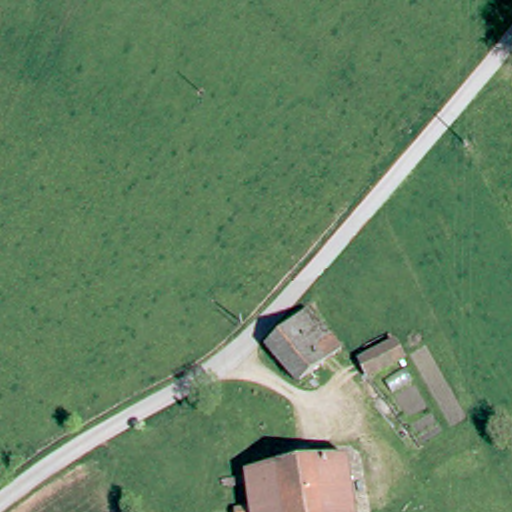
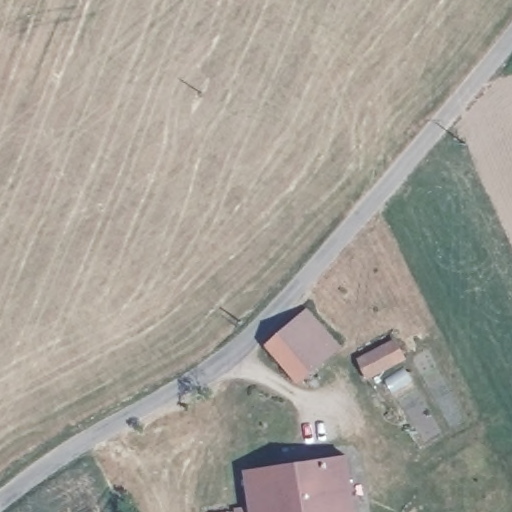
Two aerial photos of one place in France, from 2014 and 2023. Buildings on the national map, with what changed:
unchanged [(274,350),(313,318),(343,357),(304,388),(274,350)]
unchanged [(362,465),(367,512),(269,512),(265,476),(362,465)]

